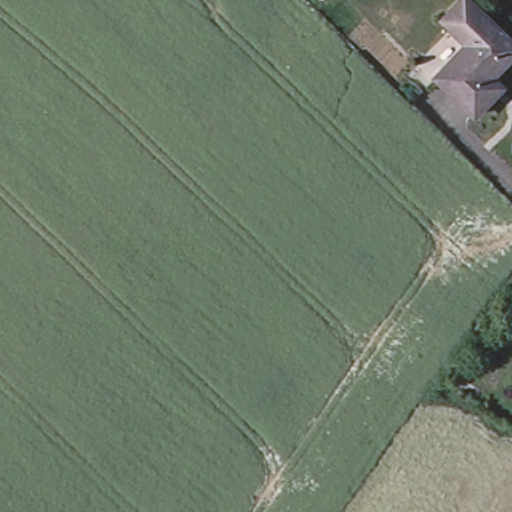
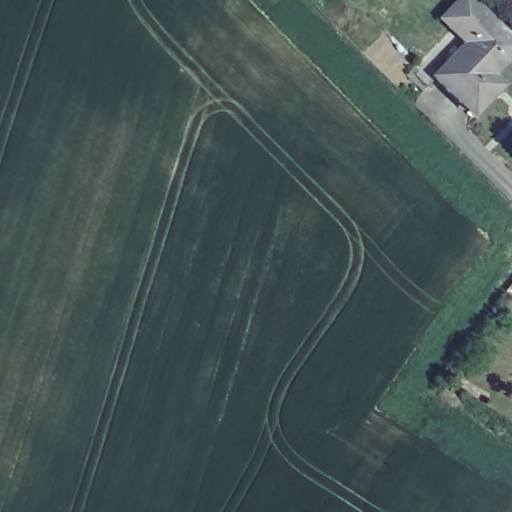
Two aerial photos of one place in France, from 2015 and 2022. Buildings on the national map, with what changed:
unchanged [(512,40),(512,46),(488,72),(496,81),(469,109),(431,71),(487,15),(512,40)]

